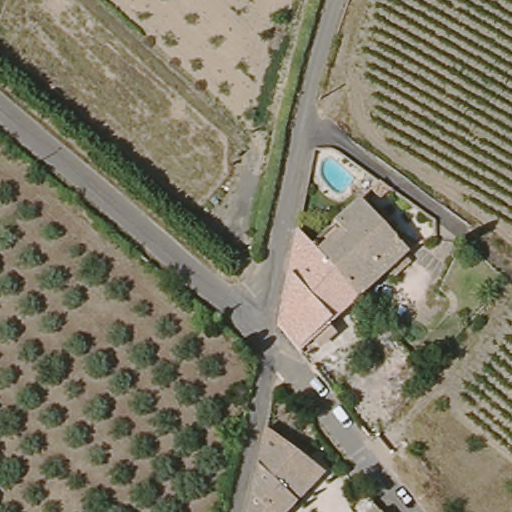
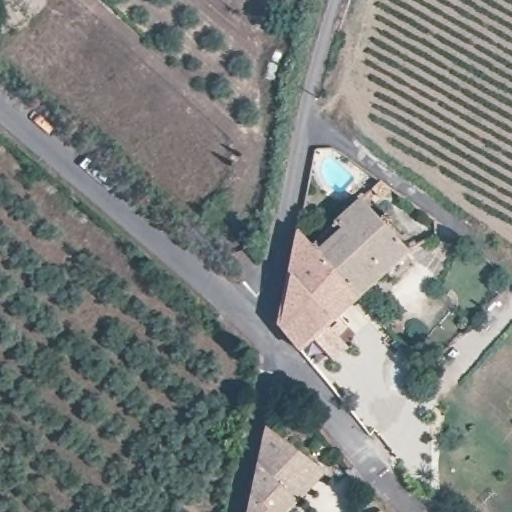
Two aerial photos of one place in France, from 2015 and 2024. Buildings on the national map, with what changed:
unchanged [(360,311),(311,260),(380,197),(434,236),(436,257),(412,263),(360,311)]
unchanged [(301,365),(278,339),(297,246),(311,260),(360,311),(301,365)]
unchanged [(244,512),(265,423),(320,467),(278,512),(244,512)]
unchanged [(363,512),(361,510),(375,498),(385,512),(363,512)]

